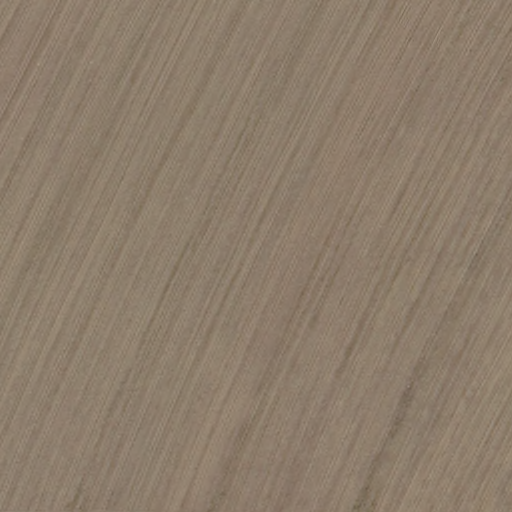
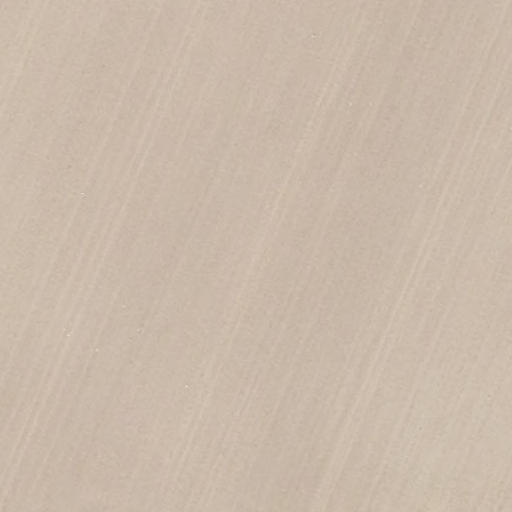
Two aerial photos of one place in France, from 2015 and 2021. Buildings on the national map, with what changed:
[]

